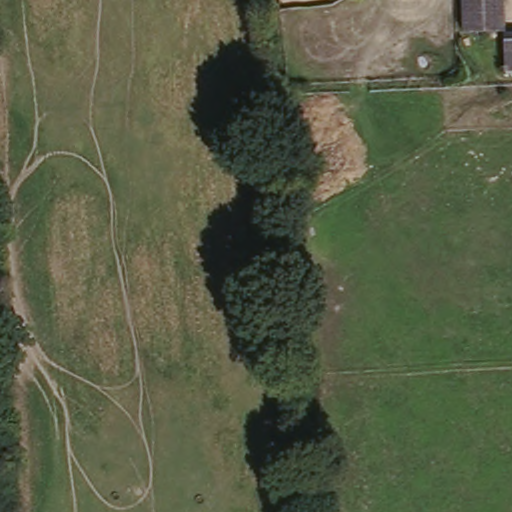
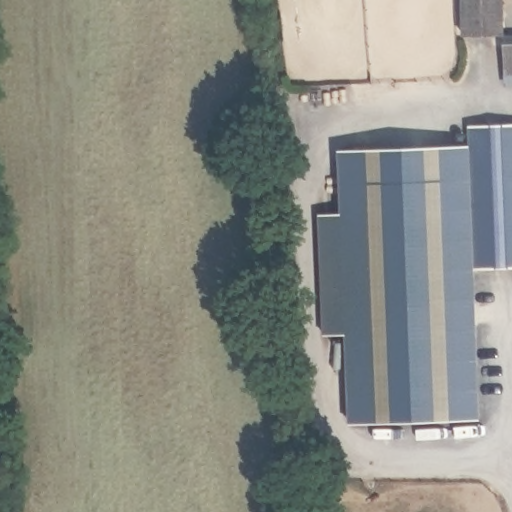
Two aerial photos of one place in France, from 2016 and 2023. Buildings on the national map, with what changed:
unchanged [(458,31),(457,0),(502,0),(502,30),(458,31)]
unchanged [(502,34),(512,34),(512,72),(503,72),(502,34)]
new [(463,428),(345,428),(346,327),(316,329),(315,202),(343,204),(341,130),(470,128),(470,116),(512,116),(512,267),(463,266),(463,428)]

